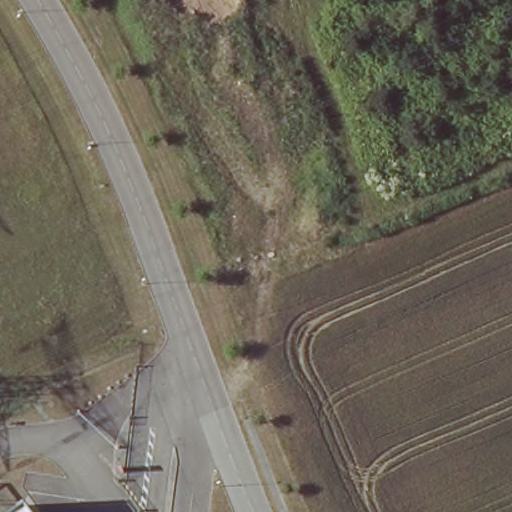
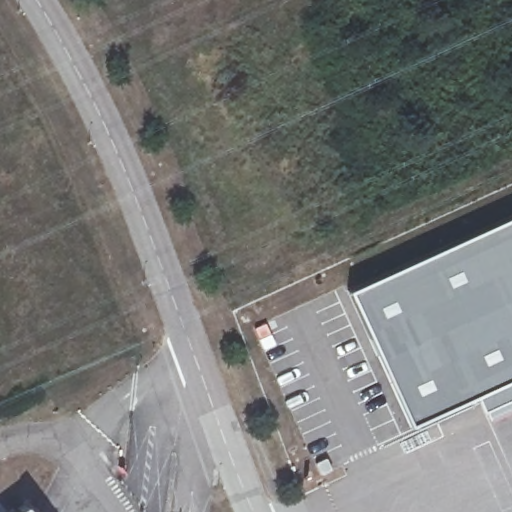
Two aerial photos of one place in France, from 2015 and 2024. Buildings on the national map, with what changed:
new [(416,432),(354,296),(512,224),(512,389),(416,432)]
new [(491,417),(484,401),(512,389),(512,408),(491,417)]
unchanged [(27,512),(11,512),(22,504),(27,512)]

